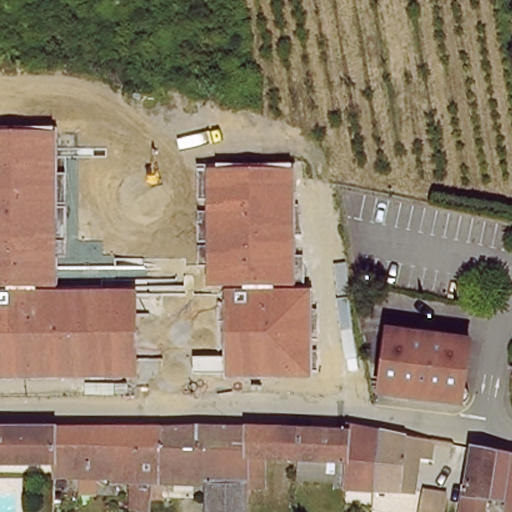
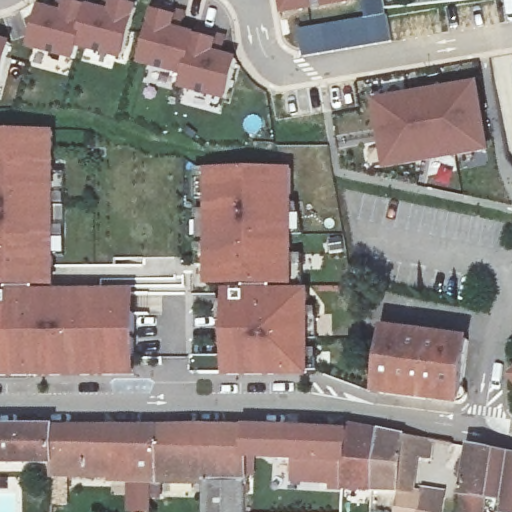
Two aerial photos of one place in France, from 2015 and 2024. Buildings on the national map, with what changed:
new [(276,0),(352,0),(278,12),(276,0)]
new [(361,1),(365,0),(384,0),(391,42),(302,56),(297,30),(363,20),(361,1)]
new [(56,16),(58,5),(104,16),(107,2),(133,10),(118,65),(73,55),(70,67),(23,57),(33,11),(56,16)]
new [(174,21),(171,32),(210,44),(212,34),(225,37),(222,56),(231,59),(220,108),(172,96),(175,80),(132,67),(146,14),(174,21)]
new [(0,64),(0,43),(5,44),(0,64)]
new [(475,79),(487,150),(380,169),(367,98),(475,79)]
unchanged [(67,174),(67,258),(57,257),(57,290),(137,292),(139,381),(0,380),(0,131),(57,132),(57,174),(67,174)]
unchanged [(225,380),(225,375),(194,376),(195,358),(225,358),(224,322),(218,323),(218,303),(225,303),(224,287),(207,287),(207,268),(198,267),(199,212),(207,214),(207,201),(197,201),(198,167),(294,169),(295,207),(300,207),(305,236),(297,236),(295,256),(305,256),(307,291),(312,291),(312,312),(317,312),(318,340),(312,341),(312,353),(317,352),(318,371),(313,371),(312,378),(225,380)]
unchanged [(467,412),(385,400),(393,337),(475,348),(469,393),(472,394),(475,396),(477,398),(489,393),(477,403),(477,407),(475,409),(472,411),(470,412),(467,412)]
unchanged [(347,418),(379,424),(373,485),(342,485),(343,462),(345,428),(347,418)]
unchanged [(194,422),(192,479),(186,480),(180,480),(157,479),(158,423),(194,422)]
unchanged [(215,422),(245,423),(245,481),(197,479),(192,479),(194,422),(215,422)]
unchanged [(157,479),(148,480),(148,511),(131,510),(129,482),(107,482),(106,478),(67,477),(67,506),(51,505),(52,461),(55,426),(158,423),(157,479)]
unchanged [(245,423),(258,424),(345,428),(343,462),(262,454),(262,457),(262,485),(245,485),(245,481),(245,423)]
unchanged [(379,424),(406,428),(435,434),(434,463),(416,465),(415,485),(373,485),(379,424)]
unchanged [(52,461),(0,463),(0,427),(55,426),(52,461)]
unchanged [(488,502),(481,501),(480,512),(458,512),(460,496),(468,451),(491,455),(488,502)]
unchanged [(512,459),(512,512),(504,512),(503,505),(488,502),(491,455),(512,459)]
unchanged [(245,481),(245,485),(262,485),(262,512),(203,512),(203,490),(197,490),(197,479),(245,481)]

